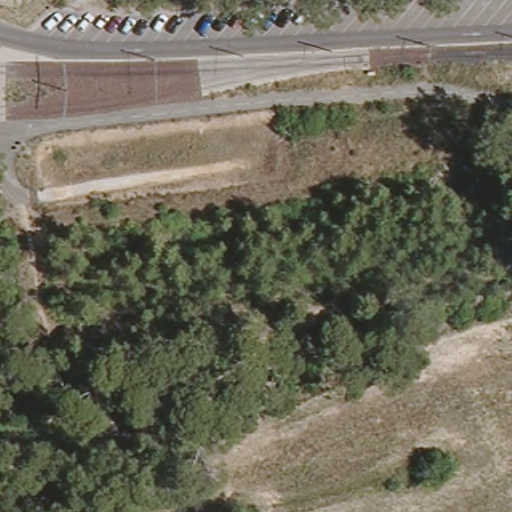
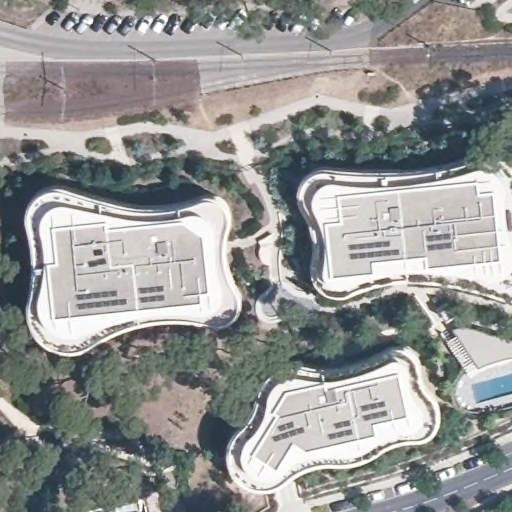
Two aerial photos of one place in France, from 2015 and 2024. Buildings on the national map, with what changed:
new [(339,291),(331,291),(325,286),(316,279),(313,271),(313,263),(316,252),(316,237),(315,227),(313,218),(307,209),(301,199),(299,190),(300,184),(304,177),(310,169),(319,165),(326,165),(331,165),(350,168),(384,168),(436,164),(465,156),(487,149),(496,145),(511,147),(512,148),(512,293),(508,293),(498,290),(484,285),(463,281),(439,277),(414,275),(400,275),(373,280),(360,284),(346,291),(339,291)]
new [(55,345),(47,340),(39,334),(33,326),(30,319),(28,309),(28,301),(30,289),(33,276),(34,266),(34,254),(33,243),(31,232),(28,223),(26,213),(26,209),(26,204),(28,202),(31,196),(38,190),(45,186),(57,183),(65,185),(76,189),(98,195),(118,201),(151,204),(169,203),(181,200),(196,196),(203,193),(210,193),(220,197),(226,204),(230,211),(230,217),(226,229),(225,234),(224,246),(225,260),(228,271),(232,279),(238,287),(240,293),(240,298),(238,307),(235,313),(229,318),(221,321),(211,321),(201,318),(188,315),(173,315),(160,316),(131,321),(121,325),(106,332),(94,339),(84,345),(78,347),(68,347),(55,345)]
new [(460,327),(467,327),(475,329),(486,332),(506,338),(512,340),(512,361),(506,361),(495,364),(483,369),(471,377),(447,340),(458,333),(454,328),(460,327)]
new [(438,407),(437,418),(432,426),(424,432),(412,434),(402,434),(391,438),(367,451),(355,455),(343,456),(330,456),(318,456),(306,461),(286,475),(276,480),(264,481),(252,478),(243,473),(238,469),(232,457),(231,443),(233,432),(240,421),(251,408),(259,397),(261,382),(270,369),(284,362),(298,361),(303,364),(313,367),(330,365),(344,363),(360,358),(378,352),(393,344),(400,343),(408,344),(415,347),(420,355),(422,363),(422,373),(425,381),(436,395),(438,407)]

